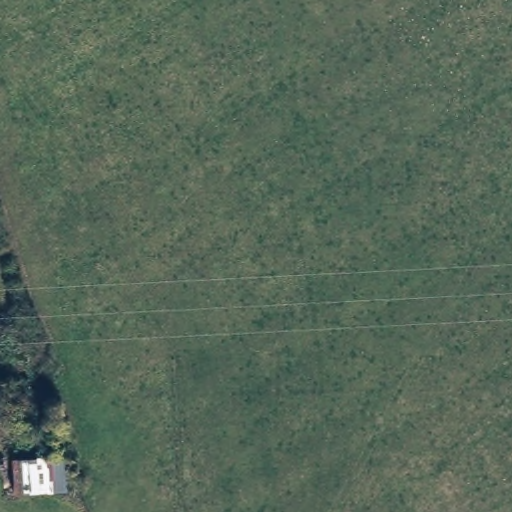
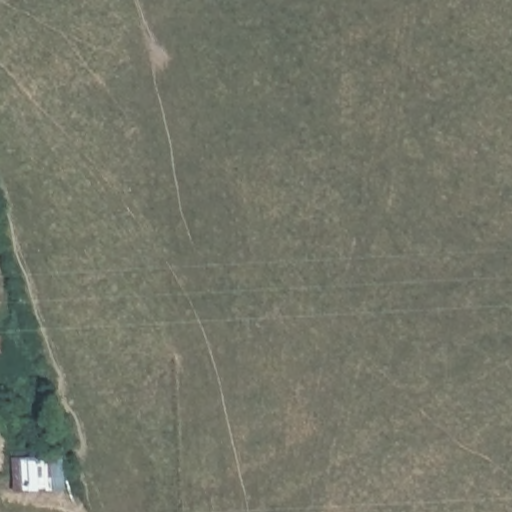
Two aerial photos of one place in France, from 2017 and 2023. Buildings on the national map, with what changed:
unchanged [(62,500),(14,501),(14,459),(59,457),(62,500)]

